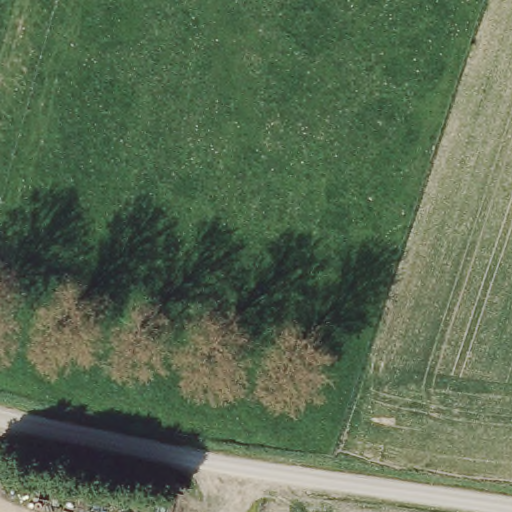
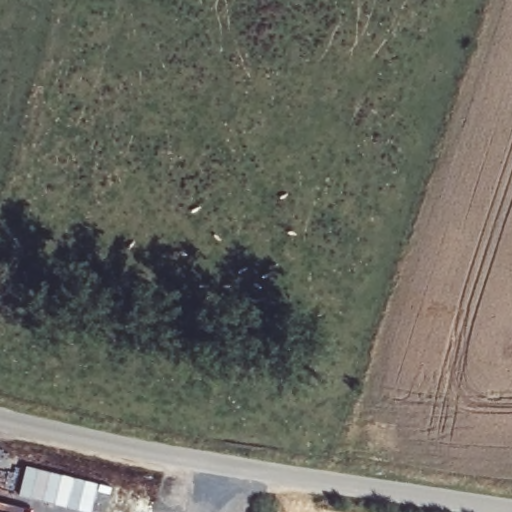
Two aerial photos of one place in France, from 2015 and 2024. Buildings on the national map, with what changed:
new [(93,512),(89,512),(22,495),(29,465),(100,483),(93,512)]

